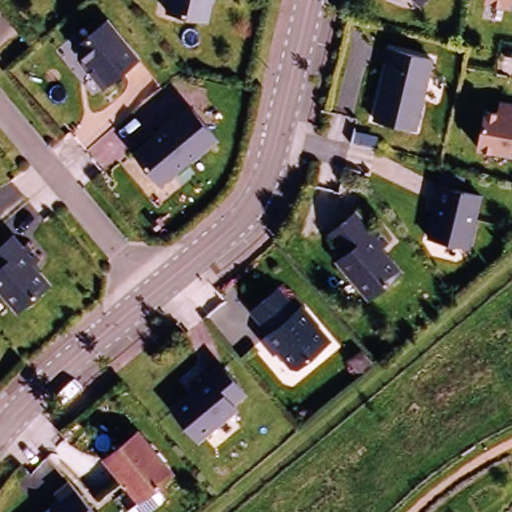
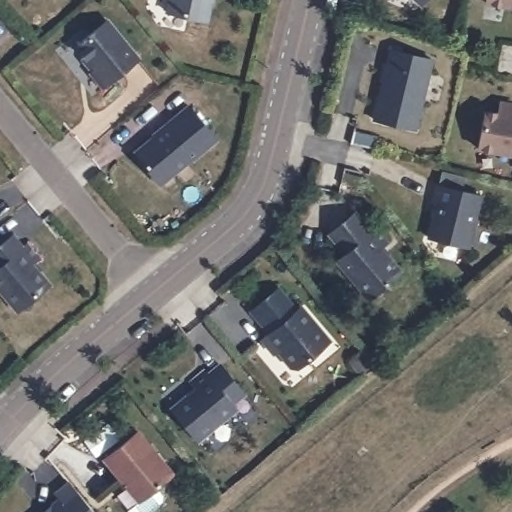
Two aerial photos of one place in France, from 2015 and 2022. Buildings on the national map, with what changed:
unchanged [(163,19),(168,0),(210,0),(203,27),(163,19)]
unchanged [(416,0),(422,0),(420,3),(416,0)]
unchanged [(485,6),(486,0),(512,0),(512,11),(485,6)]
unchanged [(140,60),(105,88),(92,71),(96,69),(80,50),(80,44),(109,21),(140,60)]
unchanged [(430,65),(413,135),(372,125),(388,55),(430,65)]
unchanged [(163,134),(162,132),(186,111),(215,145),(190,165),(189,165),(158,190),(132,160),(163,134)]
unchanged [(477,155),(484,118),(497,120),(498,112),(512,115),(512,162),(477,155)]
unchanged [(477,200),(465,252),(425,242),(434,207),(430,206),(435,190),(477,200)]
unchanged [(342,261),(350,255),(333,235),(358,214),(375,234),(380,230),(392,244),(385,250),(405,273),(375,300),(342,261)]
unchanged [(0,268),(0,248),(15,235),(25,248),(30,245),(42,258),(35,265),(51,285),(20,310),(0,287),(0,268)]
unchanged [(277,357),(273,361),(262,347),(270,340),(251,317),(277,295),(296,317),(300,313),(329,348),(297,375),(292,375),(277,357)]
unchanged [(243,399),(231,410),(235,415),(197,446),(171,415),(195,395),(190,388),(204,376),(207,381),(220,371),(243,399)]
unchanged [(135,436),(170,479),(137,506),(102,465),(135,436)]
unchanged [(83,512),(46,512),(54,505),(50,499),(63,488),(83,512)]

